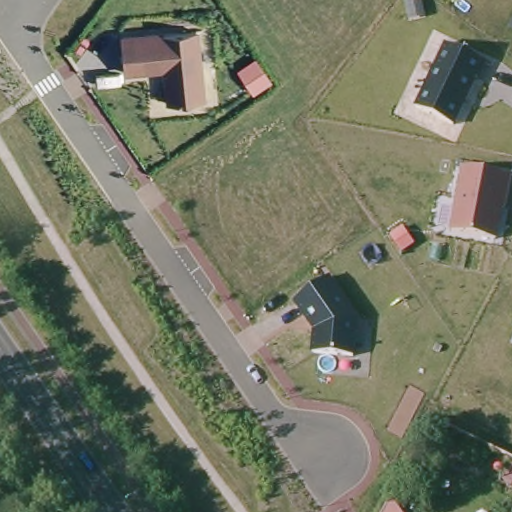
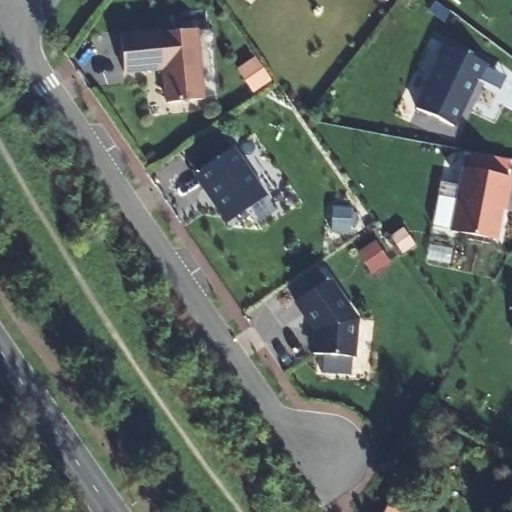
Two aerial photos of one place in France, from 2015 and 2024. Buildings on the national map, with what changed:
new [(384,1),(382,0),(385,0),(384,1)]
unchanged [(122,73),(120,35),(198,30),(204,99),(165,102),(161,70),(122,73)]
unchanged [(415,108),(444,45),(482,60),(455,126),(415,108)]
new [(259,226),(247,210),(230,221),(215,199),(213,200),(195,174),(187,161),(223,136),(232,149),(251,177),(253,176),(267,196),(265,197),(276,214),(259,226)]
unchanged [(510,175),(498,240),(450,230),(461,167),(510,175)]
unchanged [(330,278),(359,318),(355,357),(310,353),(312,331),(292,303),(330,278)]
unchanged [(400,512),(386,512),(392,500),(400,512)]

